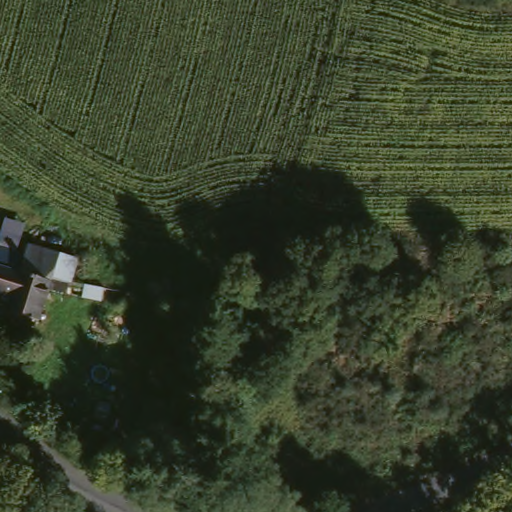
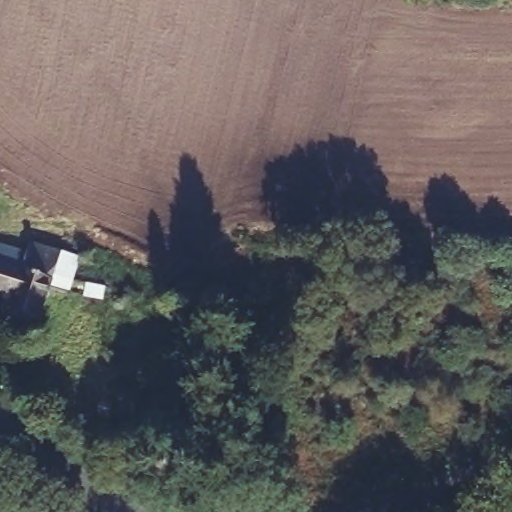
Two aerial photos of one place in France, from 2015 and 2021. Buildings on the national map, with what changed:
unchanged [(0,296),(0,250),(22,255),(24,248),(58,257),(75,261),(69,284),(51,280),(36,326),(3,315),(8,298),(0,296)]
unchanged [(102,292),(100,301),(68,292),(69,284),(102,292)]

